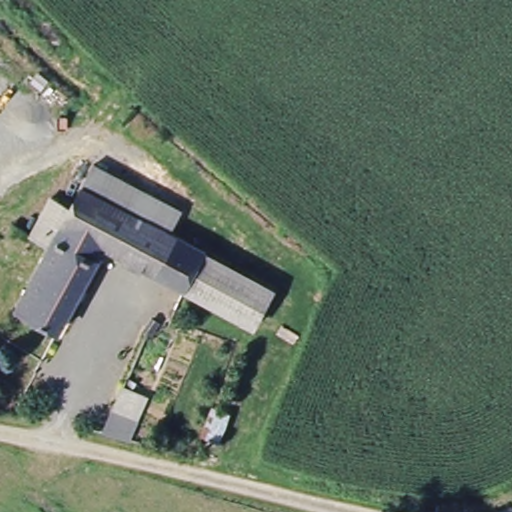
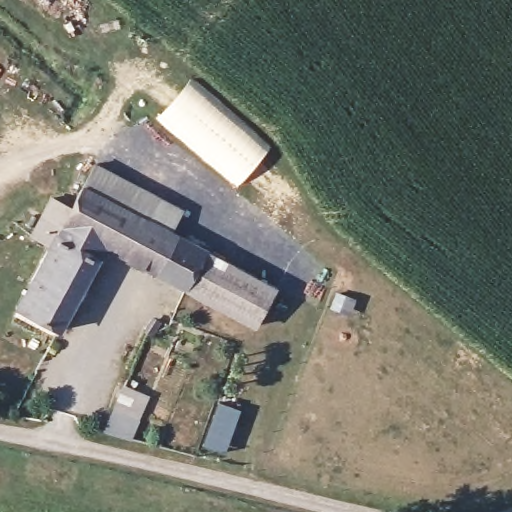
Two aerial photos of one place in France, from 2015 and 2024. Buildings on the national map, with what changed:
new [(189,81),(267,151),(236,187),(155,118),(189,81)]
unchanged [(82,187),(95,163),(159,199),(147,222),(82,187)]
unchanged [(187,293),(104,249),(60,333),(16,310),(51,246),(33,236),(52,196),(73,207),(82,187),(147,222),(207,254),(187,293)]
unchanged [(276,292),(256,331),(187,293),(207,254),(276,292)]
unchanged [(100,431),(119,386),(141,398),(127,437),(100,431)]
unchanged [(216,443),(197,436),(210,406),(227,414),(216,443)]

